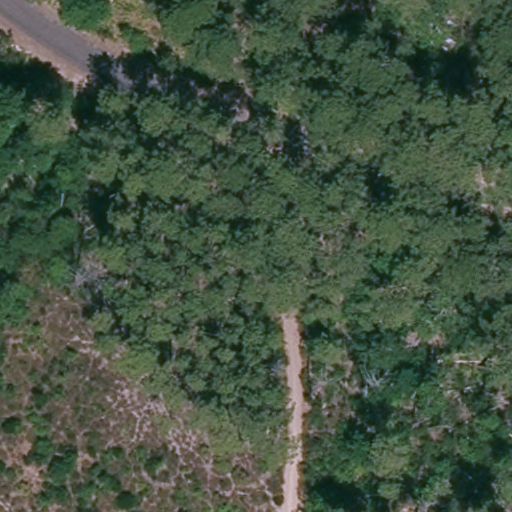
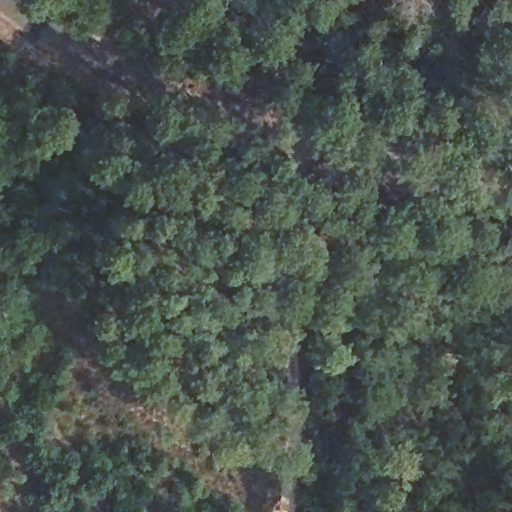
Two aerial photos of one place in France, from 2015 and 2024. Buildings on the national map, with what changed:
unchanged [(415,4),(406,27),(427,34),(432,28),(450,37),(445,47),(450,50),(452,43),(461,47),(444,86),(404,72),(401,77),(383,70),(386,63),(358,58),(385,0),(405,0),(415,4)]

